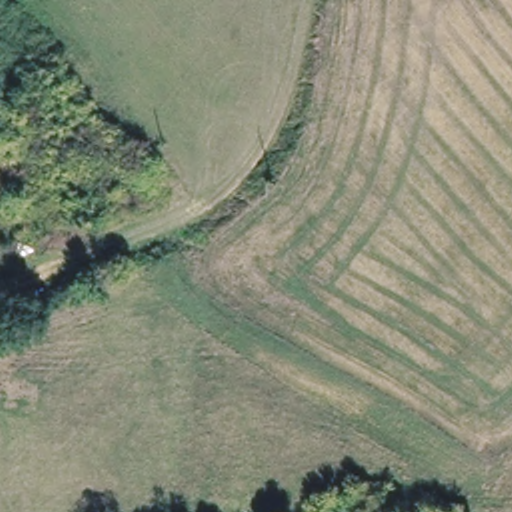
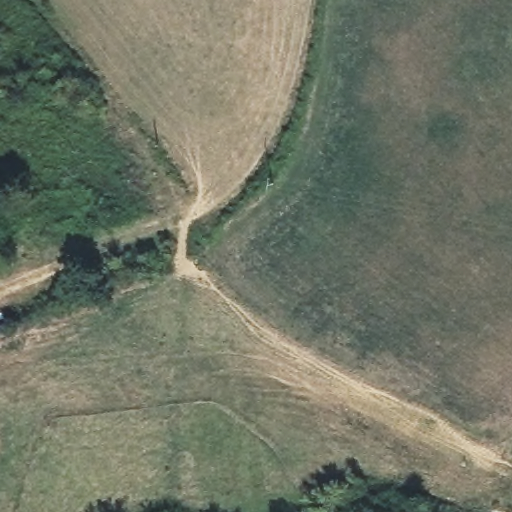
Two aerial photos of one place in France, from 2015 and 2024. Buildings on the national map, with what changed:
[]

